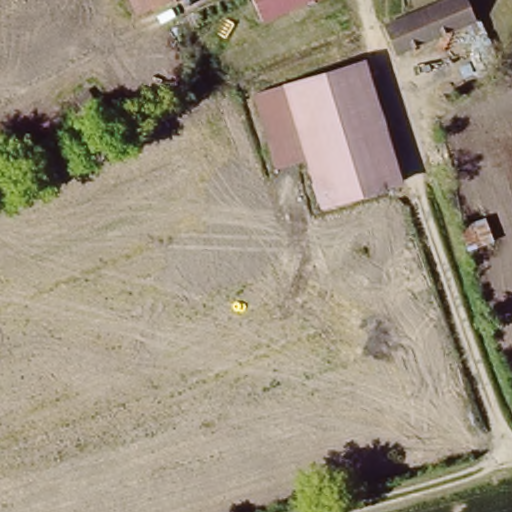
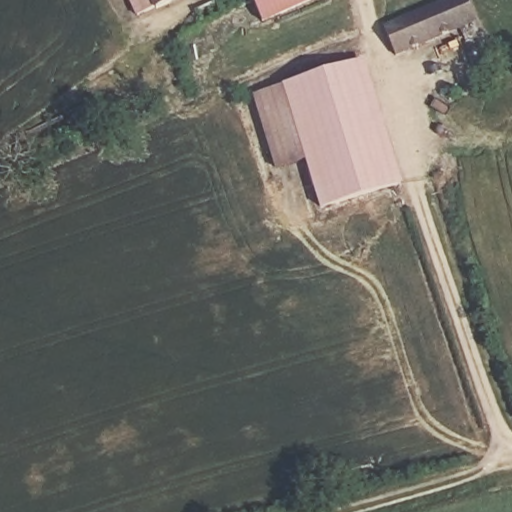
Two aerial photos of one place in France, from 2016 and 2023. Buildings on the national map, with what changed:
unchanged [(154,0),(157,0),(154,1),(154,0)]
unchanged [(195,4),(202,0),(246,0),(203,20),(195,4)]
unchanged [(257,0),(290,0),(263,13),(257,0)]
unchanged [(403,46),(392,19),(436,0),(478,0),(484,13),(403,46)]
unchanged [(367,55),(405,168),(297,204),(259,92),(367,55)]

